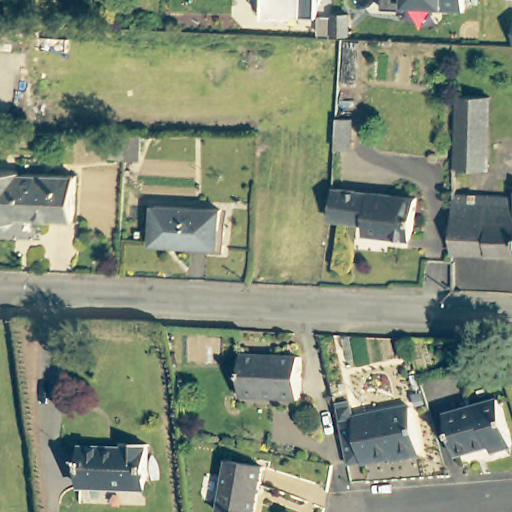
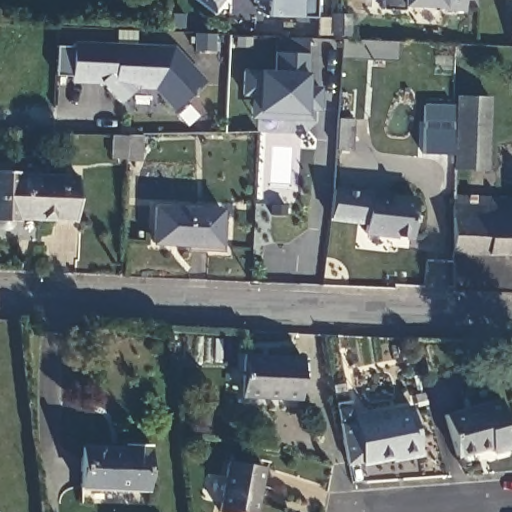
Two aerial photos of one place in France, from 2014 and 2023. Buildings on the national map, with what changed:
unchanged [(264,16),(262,16),(261,15),(259,14),(258,14),(256,13),(255,11),(254,9),(254,8),(253,6),(253,5),(253,3),(253,0),(316,0),(315,19),(266,16),(264,16)]
unchanged [(441,9),(441,7),(404,6),(404,11),(381,10),(381,0),(463,0),(463,10),(441,9)]
new [(257,69),(273,69),(272,50),(275,50),(275,37),(307,39),(308,52),(308,74),(307,74),(307,85),(321,86),(319,110),(311,110),(311,121),(248,116),(249,95),(240,94),(241,70),(257,69)]
new [(55,46),(73,47),(73,41),(173,45),(205,80),(172,109),(153,89),(136,89),(120,103),(101,84),(71,84),(71,76),(55,75),(55,46)]
unchanged [(490,98),(487,167),(454,165),(457,97),(490,98)]
unchanged [(351,124),(350,149),(335,148),(336,124),(351,124)]
unchanged [(140,135),(139,156),(125,155),(125,158),(110,156),(111,134),(126,135),(140,135)]
unchanged [(18,174),(76,176),(74,221),(16,219),(16,222),(12,221),(12,222),(11,223),(11,224),(10,225),(10,227),(9,227),(8,228),(7,228),(6,228),(5,229),(3,229),(2,229),(1,229),(0,229),(0,171),(18,172),(18,174)]
unchanged [(415,199),(411,238),(363,233),(364,223),(328,218),(332,189),(415,199)]
unchanged [(512,193),(512,250),(487,249),(451,248),(451,190),(512,193)]
unchanged [(220,210),(219,228),(225,229),(224,252),(206,252),(206,245),(151,243),(154,207),(220,210)]
unchanged [(301,358),(299,399),(241,397),(244,354),(301,358)]
unchanged [(500,400),(512,444),(512,448),(492,453),(490,447),(456,457),(444,416),(500,400)]
unchanged [(424,454),(402,459),(401,456),(367,463),(366,461),(352,463),(352,461),(344,423),(340,404),(354,402),(356,405),(358,418),(415,407),(424,454)]
unchanged [(125,449),(125,444),(147,444),(146,489),(81,488),(82,447),(125,449)]
unchanged [(263,467),(254,512),(218,512),(228,461),(263,467)]

